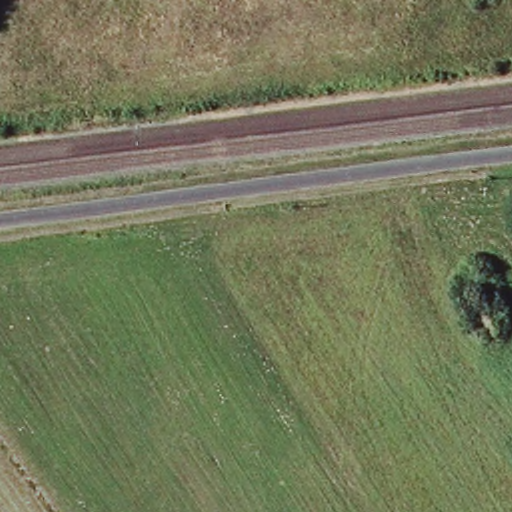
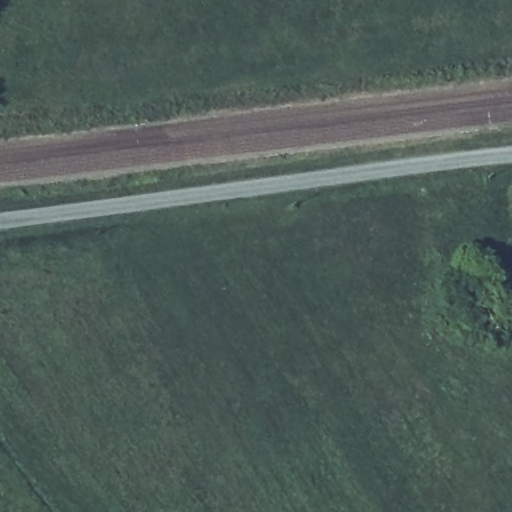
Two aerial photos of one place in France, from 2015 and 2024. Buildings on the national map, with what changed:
unchanged [(478,294),(493,323),(479,331),(464,300),(478,294)]

